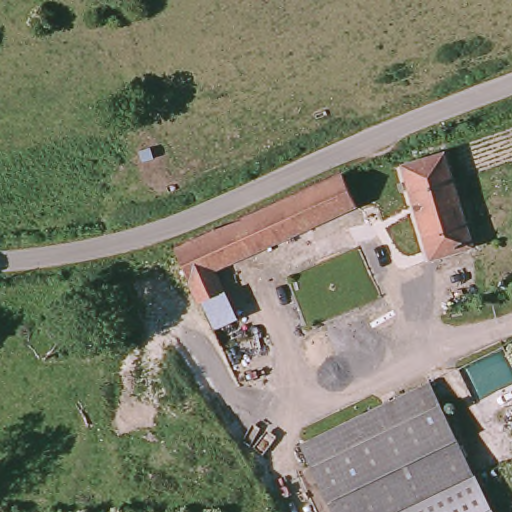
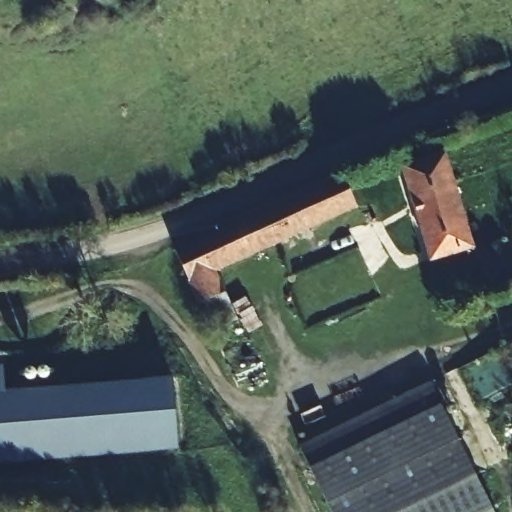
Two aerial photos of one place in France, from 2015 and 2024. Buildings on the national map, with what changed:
unchanged [(405,170),(445,157),(472,246),(434,258),(405,170)]
unchanged [(338,170),(352,200),(210,266),(228,313),(205,323),(190,295),(170,250),(168,246),(338,170)]
new [(0,462),(0,365),(3,365),(5,390),(172,376),(179,447),(0,462)]
unchanged [(386,512),(331,512),(298,444),(427,382),(472,471),(386,512)]
unchanged [(492,508),(494,512),(386,512),(472,471),(492,508)]

